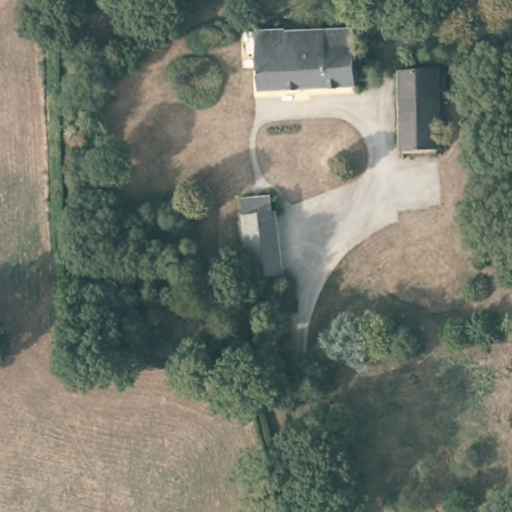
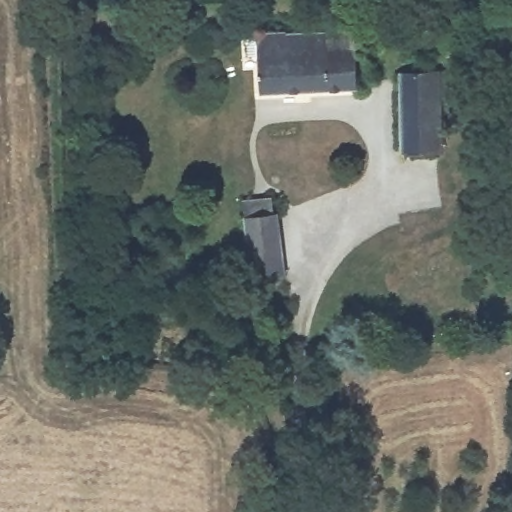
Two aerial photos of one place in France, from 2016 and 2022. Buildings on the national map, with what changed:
unchanged [(259,91),(257,53),(250,53),(249,42),(244,40),(247,29),(288,27),(288,30),(354,27),(357,87),(259,91)]
unchanged [(401,151),(401,69),(438,68),(437,151),(401,151)]
unchanged [(243,198),(270,195),(273,210),(279,211),(282,243),(248,246),(243,198)]
unchanged [(282,243),(285,273),(251,278),(248,246),(282,243)]

